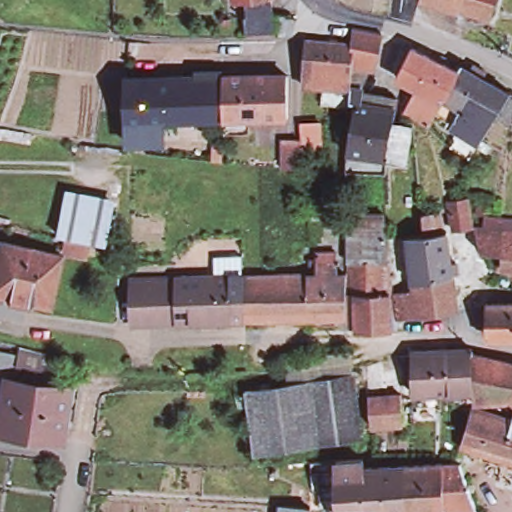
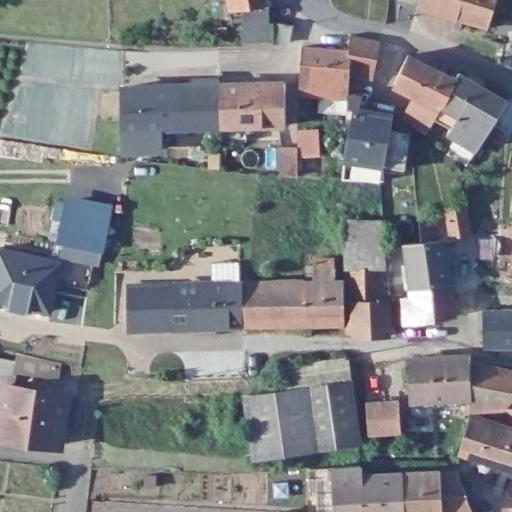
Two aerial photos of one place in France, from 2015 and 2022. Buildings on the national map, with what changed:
unchanged [(271,10),(245,14),(232,15),(231,0),(271,0),(273,10),(271,10)]
unchanged [(397,12),(398,2),(398,0),(461,0),(455,18),(415,6),(408,5),(405,15),(397,12)]
unchanged [(485,27),(455,18),(461,0),(494,0),(485,27)]
unchanged [(272,26),(277,26),(277,45),(244,46),(242,29),(246,28),(245,14),(271,10),(272,26)]
unchanged [(381,108),(382,102),(395,105),(393,115),(391,129),(410,132),(403,168),(345,159),(352,110),(345,109),(324,107),(326,94),(298,92),(302,47),(348,50),(350,35),(378,40),(371,75),(368,74),(360,95),(358,105),(375,107),(381,108)]
unchanged [(465,76),(468,71),(483,79),(480,84),(506,99),(476,148),(447,131),(450,126),(435,117),(426,133),(409,122),(403,119),(415,95),(395,84),(409,55),(455,78),(458,72),(465,76)]
unchanged [(220,140),(220,126),(172,127),(170,86),(218,85),(283,84),(285,124),(245,125),(245,139),(220,140)]
unchanged [(123,150),(123,129),(123,87),(170,86),(172,127),(160,127),(160,149),(123,150)]
unchanged [(512,126),(508,132),(495,124),(508,101),(512,103),(512,126)]
unchanged [(348,119),(347,126),(341,125),(343,117),(348,119)]
unchanged [(316,130),(318,152),(298,154),(297,132),(316,130)]
unchanged [(296,149),(297,177),(278,176),(281,147),(296,149)]
unchanged [(101,249),(82,246),(56,241),(64,200),(108,209),(101,249)]
unchanged [(464,209),(470,239),(450,242),(445,212),(464,209)]
unchanged [(420,225),(437,223),(439,243),(445,242),(456,320),(438,323),(395,330),(391,302),(411,301),(403,247),(422,245),(420,225)]
unchanged [(381,226),(385,273),(380,275),(380,302),(345,303),(344,285),(343,226),(381,226)]
unchanged [(498,275),(501,261),(478,263),(470,237),(512,240),(512,283),(501,280),(498,275)]
unchanged [(0,307),(0,248),(59,261),(48,310),(29,306),(28,308),(7,303),(6,308),(0,307)]
unchanged [(313,265),(333,265),(335,285),(344,285),(345,303),(345,327),(332,327),(243,331),(241,287),(313,285),(313,265)]
unchanged [(131,297),(151,298),(150,290),(150,274),(171,273),(172,289),(241,287),(243,331),(151,332),(130,333),(131,297)]
unchanged [(380,302),(391,302),(395,330),(396,338),(353,341),(345,336),(345,327),(345,303),(380,302)]
unchanged [(512,350),(490,350),(485,350),(485,347),(483,315),(491,314),(512,314),(512,350)]
unchanged [(0,403),(0,359),(15,362),(11,387),(3,385),(1,403),(0,403)]
unchanged [(445,360),(469,359),(470,364),(471,402),(410,403),(410,362),(445,360)]
unchanged [(512,401),(505,411),(471,413),(471,402),(470,364),(512,374),(512,401)]
unchanged [(11,387),(67,395),(60,444),(0,435),(0,410),(1,403),(3,385),(11,387)]
unchanged [(351,385),(360,444),(313,451),(305,392),(351,385)]
unchanged [(305,392),(313,451),(254,461),(245,402),(305,392)]
unchanged [(512,404),(512,415),(507,411),(512,404)]
unchanged [(399,405),(401,435),(368,437),(366,407),(399,405)]
unchanged [(475,462),(460,458),(470,419),(502,428),(502,430),(512,432),(512,481),(473,469),(475,462)]
unchanged [(401,477),(404,512),(319,512),(318,502),(310,502),(309,473),(317,472),(335,471),(360,468),(361,478),(401,477)]
unchanged [(440,477),(458,476),(471,512),(404,512),(401,477),(440,475),(440,477)]

